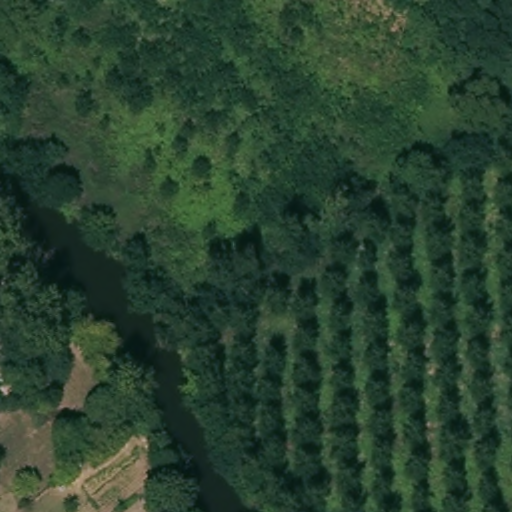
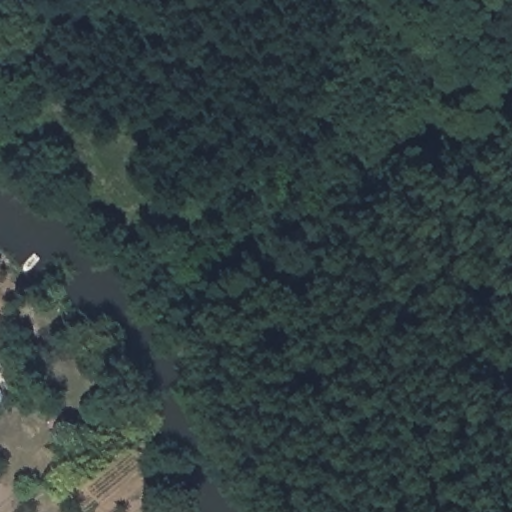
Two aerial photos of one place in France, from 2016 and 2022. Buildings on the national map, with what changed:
[]

